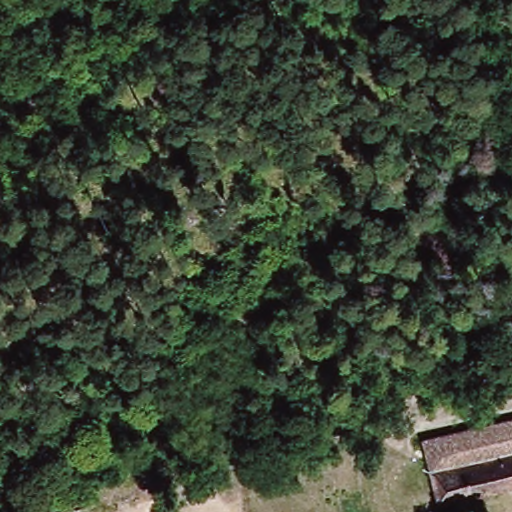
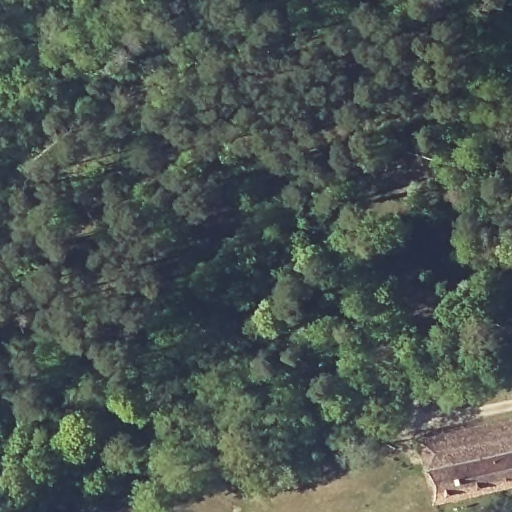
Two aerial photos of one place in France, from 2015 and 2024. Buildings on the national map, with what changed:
unchanged [(512,423),(512,487),(440,505),(425,442),(512,423)]

